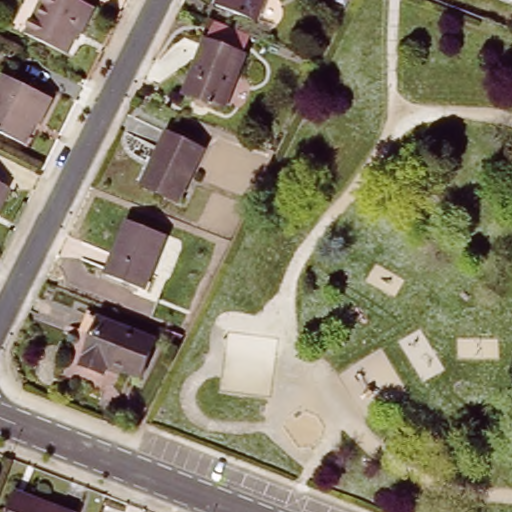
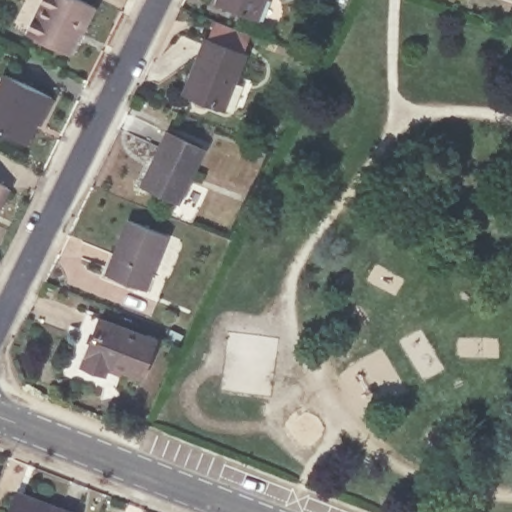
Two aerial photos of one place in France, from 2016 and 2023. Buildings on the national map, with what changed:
unchanged [(89,7),(79,30),(74,29),(63,50),(21,31),(36,0),(76,0),(89,7)]
unchanged [(217,0),(262,0),(255,17),(216,2),(217,0)]
unchanged [(203,36),(241,52),(220,106),(182,90),(203,36)]
unchanged [(46,95),(35,119),(31,116),(19,139),(0,129),(0,74),(1,72),(46,95)]
unchanged [(166,135),(201,152),(176,202),(141,184),(166,135)]
unchanged [(6,185),(0,198),(0,181),(6,185)]
unchanged [(129,215),(166,230),(146,285),(108,270),(129,215)]
unchanged [(100,315),(156,336),(143,373),(109,360),(104,369),(82,360),(100,315)]
unchanged [(71,512),(4,512),(13,490),(71,512)]

